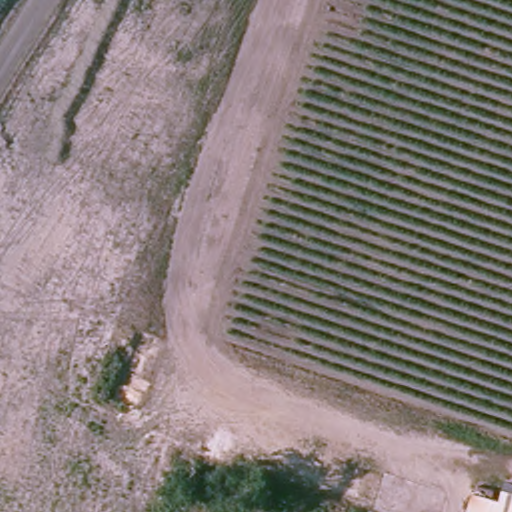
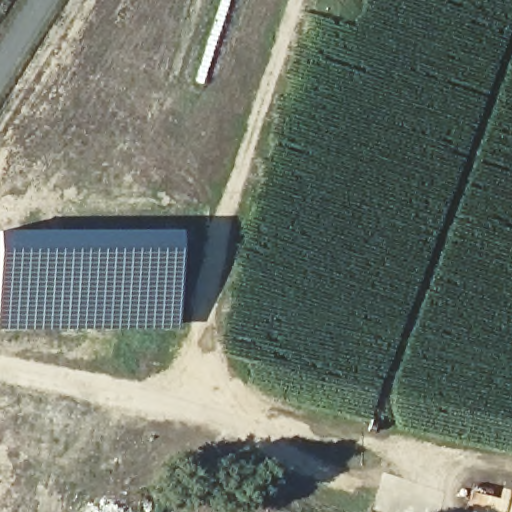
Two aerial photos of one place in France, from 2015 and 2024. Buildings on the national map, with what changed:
new [(0,330),(0,231),(179,230),(178,329),(0,330)]
unchanged [(504,480),(512,482),(512,512),(466,512),(470,493),(499,500),(504,480)]

